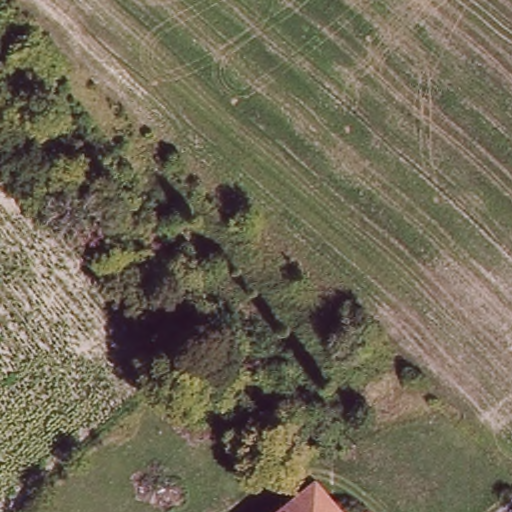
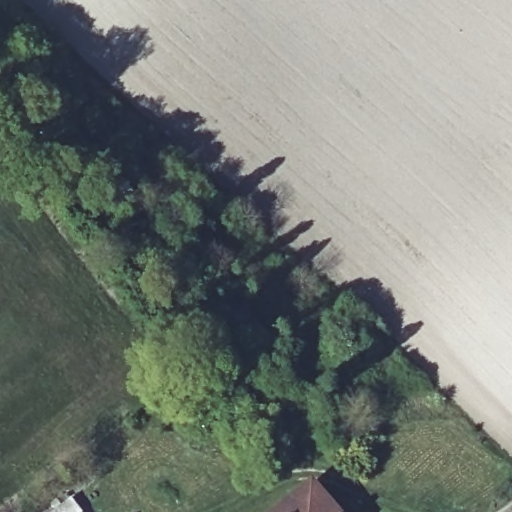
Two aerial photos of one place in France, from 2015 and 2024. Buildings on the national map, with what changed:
unchanged [(313,486),(337,512),(283,512),(313,486)]
new [(69,497),(80,512),(48,512),(69,497)]

